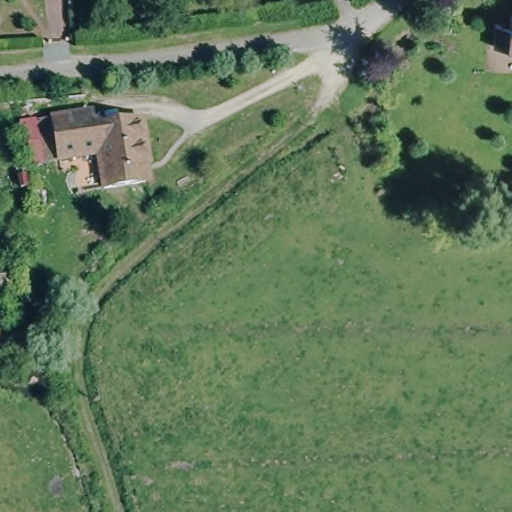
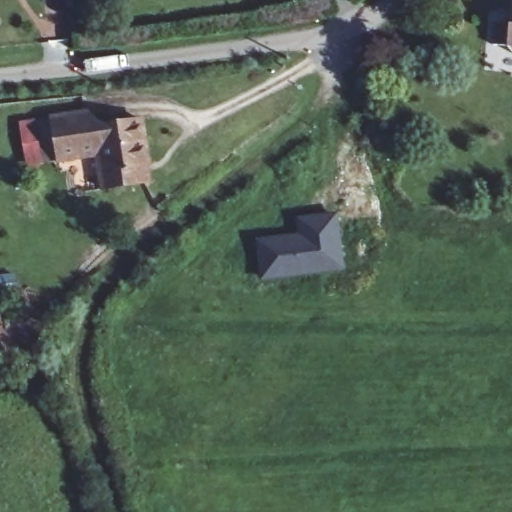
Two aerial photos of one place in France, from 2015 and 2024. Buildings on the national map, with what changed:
unchanged [(511,61),(505,52),(486,51),(488,26),(504,27),(505,13),(512,14),(512,61),(511,61)]
unchanged [(135,122),(143,185),(98,190),(94,156),(53,161),(42,162),(38,117),(48,116),(89,111),(91,127),(135,122)]
new [(344,271),(260,281),(256,237),(297,233),(296,217),(338,213),(344,271)]

